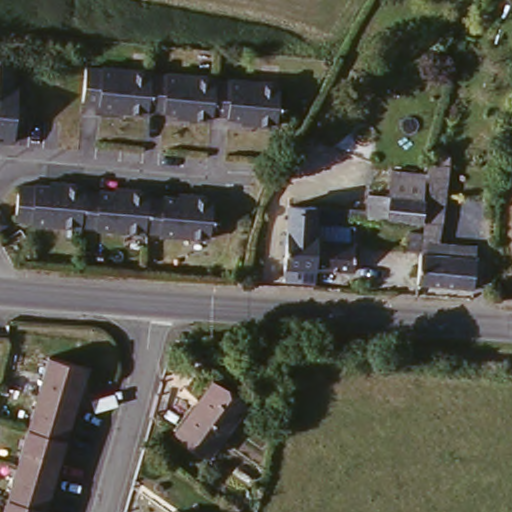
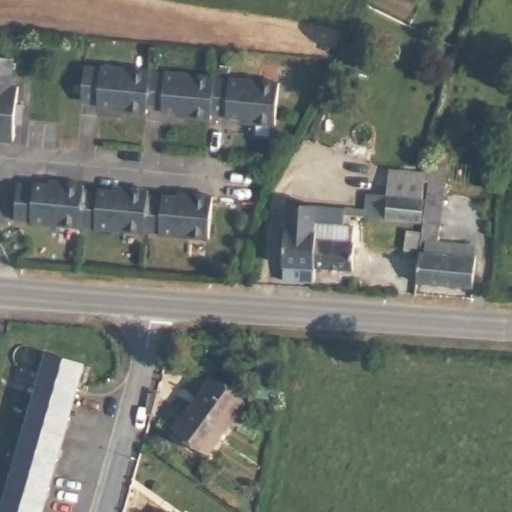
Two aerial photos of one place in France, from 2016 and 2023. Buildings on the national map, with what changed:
unchanged [(0,133),(0,50),(18,52),(15,77),(23,79),(17,136),(0,133)]
unchanged [(280,122),(257,121),(256,116),(231,113),(231,108),(217,108),(217,117),(195,117),(196,111),(167,108),(166,104),(153,104),(152,113),(127,111),(126,105),(100,104),(100,99),(83,97),(85,64),(102,65),(104,61),(155,66),(157,71),(171,72),(175,66),(217,71),(219,76),(234,77),(235,71),(284,76),(280,122)]
unchanged [(481,251),(426,245),(412,245),(413,226),(425,227),(427,218),(393,214),(366,212),(370,187),(395,189),(396,164),(433,167),(432,194),(449,196),(451,175),(482,177),(480,196),(469,195),(469,205),(450,205),(447,237),(481,240),(481,251)]
unchanged [(214,238),(166,232),(166,227),(152,227),(151,232),(102,227),(101,222),(85,221),(83,226),(39,221),(37,217),(19,215),(21,184),(37,186),(39,181),(65,184),(66,179),(87,182),(87,190),(105,192),(107,187),(132,191),(135,186),(158,189),(157,198),(171,200),(174,195),(194,197),(196,191),(215,194),(214,238)]
unchanged [(17,226),(6,231),(1,219),(11,215),(17,226)]
unchanged [(281,283),(287,228),(311,228),(313,220),(329,220),(329,225),(316,226),(313,271),(313,287),(281,283)]
unchanged [(316,226),(329,225),(330,230),(355,235),(351,274),(313,271),(316,226)]
unchanged [(478,283),(423,278),(426,245),(481,251),(478,283)]
unchanged [(49,358),(82,365),(81,382),(75,401),(40,392),(49,358)]
unchanged [(214,455),(186,434),(204,407),(201,403),(216,381),(246,407),(214,455)]
unchanged [(30,427),(40,392),(75,401),(66,435),(30,427)]
unchanged [(30,427),(66,435),(56,472),(21,463),(30,427)]
unchanged [(17,478),(21,463),(56,472),(55,480),(47,507),(11,499),(17,478)]
unchanged [(47,507),(46,512),(7,512),(11,499),(47,507)]
unchanged [(175,512),(168,512),(170,508),(175,512)]
unchanged [(190,512),(186,512),(187,511),(190,512)]

